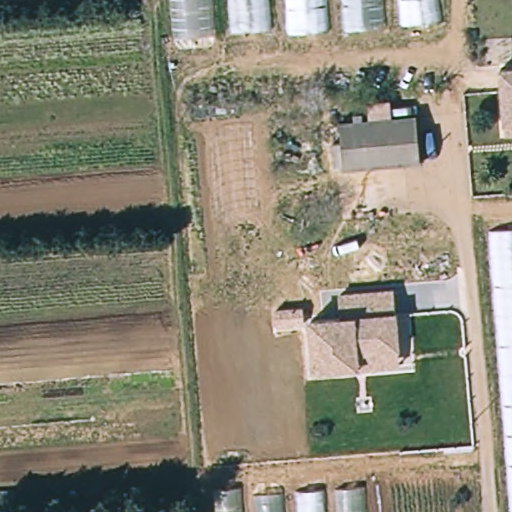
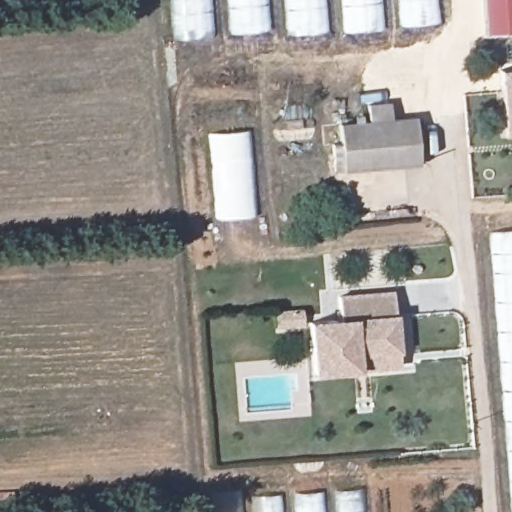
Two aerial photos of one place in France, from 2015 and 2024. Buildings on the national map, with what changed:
unchanged [(291,44),(288,29),(179,41),(173,0),(443,0),(445,26),(291,44)]
new [(481,0),(512,0),(512,29),(484,31),(481,0)]
unchanged [(501,71),(512,71),(512,136),(506,136),(501,71)]
unchanged [(349,148),(347,128),(425,122),(429,171),(343,177),(340,149),(349,148)]
new [(215,220),(208,132),(249,129),(256,217),(215,220)]
unchanged [(512,233),(512,492),(490,235),(512,233)]
unchanged [(396,312),(400,350),(400,366),(360,370),(313,374),(308,319),(342,316),(339,294),(394,289),(396,312)]
unchanged [(368,512),(220,512),(219,497),(366,487),(368,512)]

